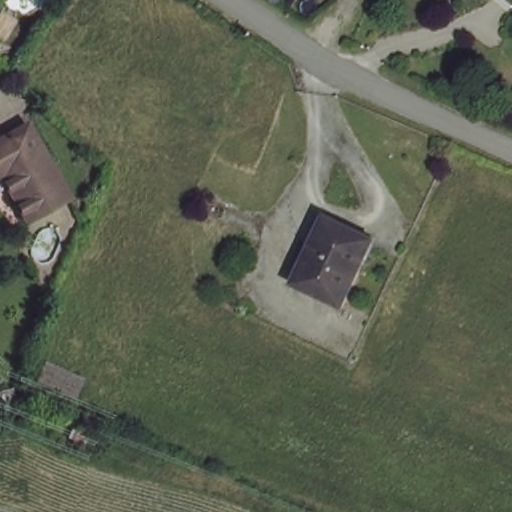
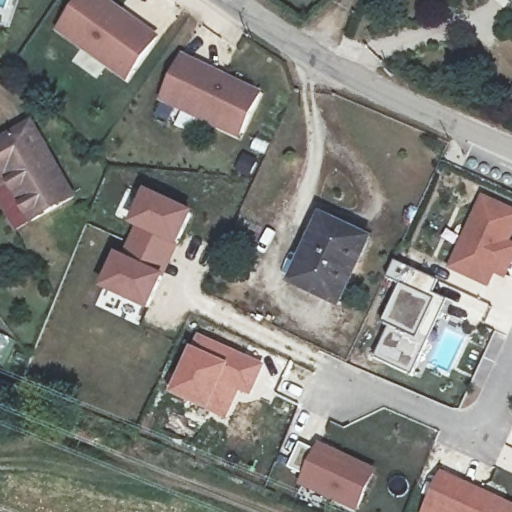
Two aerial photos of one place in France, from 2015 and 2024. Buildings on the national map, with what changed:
new [(55,33),(78,0),(107,0),(158,36),(125,84),(55,33)]
new [(237,141),(159,102),(180,55),(262,92),(237,141)]
unchanged [(60,139),(52,144),(55,153),(67,150),(86,184),(27,216),(1,173),(0,173),(0,132),(43,108),(60,139)]
new [(146,191),(195,212),(167,274),(121,254),(146,191)]
new [(512,242),(512,263),(505,280),(495,276),(489,289),(445,269),(480,195),(512,210),(512,237),(510,241),(512,242)]
unchanged [(325,215),(365,234),(362,239),(336,294),(297,277),(322,220),(325,215)]
new [(117,252),(121,254),(167,274),(149,311),(100,288),(117,252)]
new [(412,375),(374,357),(389,325),(382,322),(400,285),(387,279),(395,262),(437,281),(432,293),(446,300),(412,375)]
new [(199,334),(265,363),(252,398),(240,393),(226,421),(171,396),(199,334)]
unchanged [(52,355),(87,370),(77,392),(44,377),(52,355)]
new [(298,442),(313,448),(317,441),(377,468),(357,512),(296,483),(300,473),(286,466),(298,442)]
new [(512,503),(512,512),(423,512),(443,470),(512,503)]

